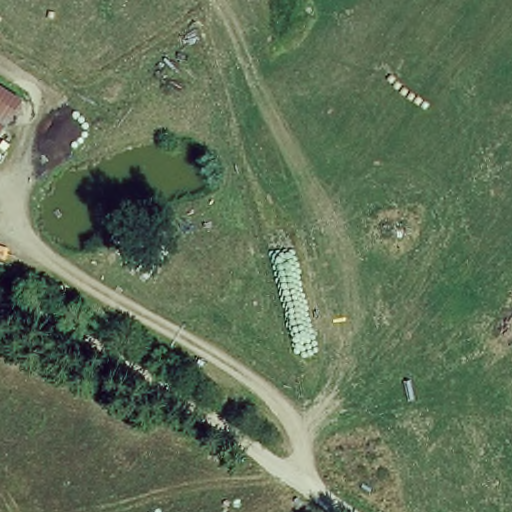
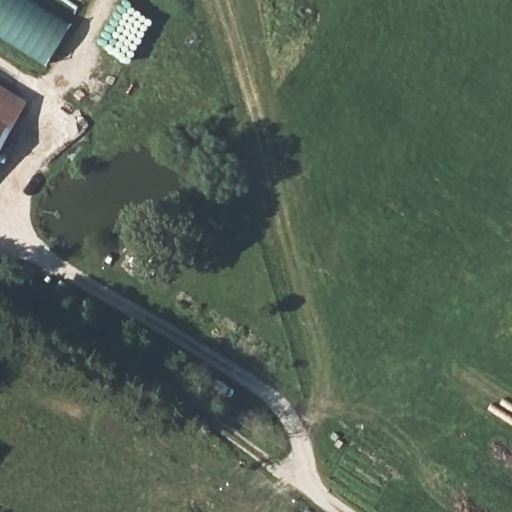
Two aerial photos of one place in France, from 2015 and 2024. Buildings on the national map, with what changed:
new [(46,67),(0,40),(0,0),(30,0),(70,27),(46,67)]
demolished [(0,140),(0,86),(25,101),(0,140)]
new [(2,132),(0,134),(0,91),(21,105),(2,132)]

